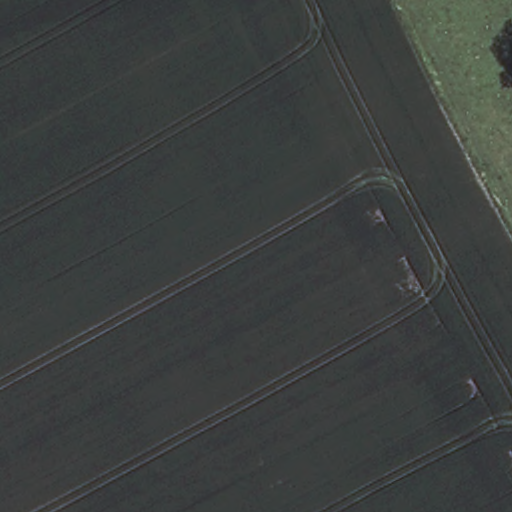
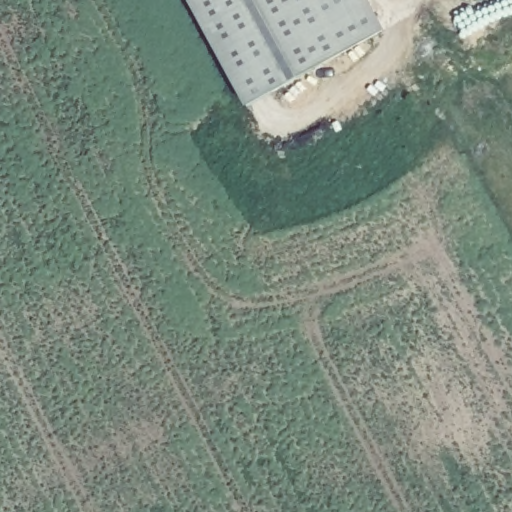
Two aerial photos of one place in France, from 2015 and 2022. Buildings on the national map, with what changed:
new [(190,0),(369,0),(385,28),(338,54),(249,106),(190,0)]

